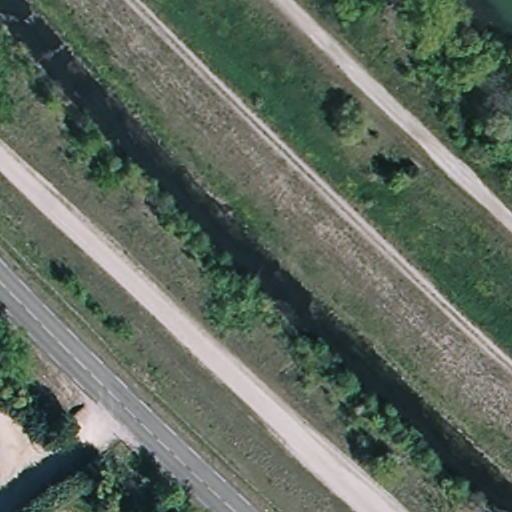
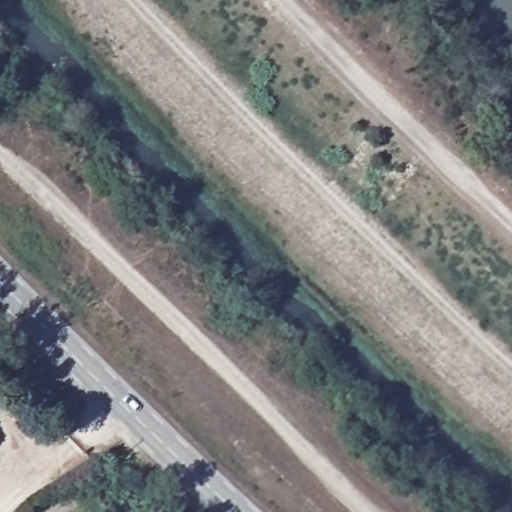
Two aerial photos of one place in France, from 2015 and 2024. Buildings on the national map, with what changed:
unchanged [(97,478),(87,468),(97,457),(108,467),(97,478)]

